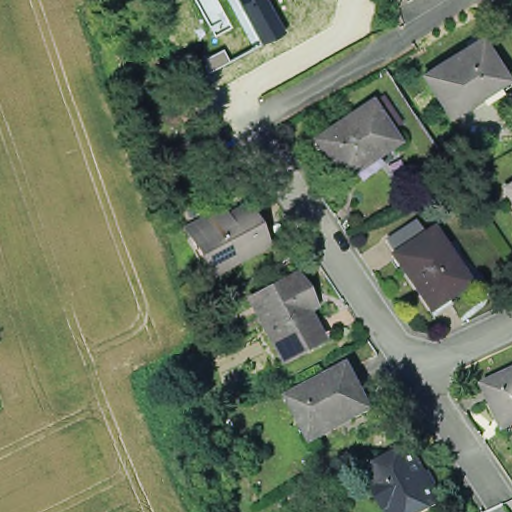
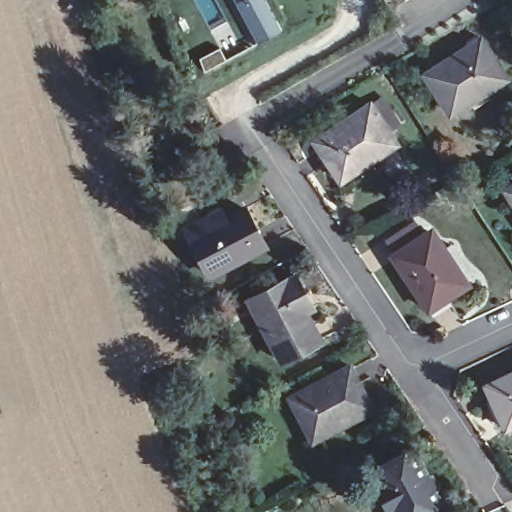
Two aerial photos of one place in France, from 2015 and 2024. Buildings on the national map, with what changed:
unchanged [(280,30),(257,42),(235,0),(265,0),(280,30)]
unchanged [(476,102),(475,99),(455,112),(430,75),(487,38),(512,77),(512,78),(476,102)]
unchanged [(204,69),(199,57),(220,47),(225,59),(204,69)]
unchanged [(380,150),(382,152),(346,176),(320,136),(376,99),(400,135),(380,150)]
unchanged [(182,169),(175,150),(193,142),(200,161),(182,169)]
unchanged [(211,270),(191,232),(245,203),(265,241),(211,270)]
unchanged [(447,255),(450,254),(475,290),(435,316),(397,260),(400,258),(391,245),(420,226),(428,240),(435,235),(447,255)]
unchanged [(287,367),(264,323),(270,320),(260,301),(301,280),(318,312),(310,316),(327,346),(287,367)]
unchanged [(342,435),(340,430),(320,441),(300,402),(360,370),(383,414),(342,435)]
unchanged [(496,386),(512,378),(512,420),(496,386)]
unchanged [(399,512),(379,475),(418,454),(447,508),(440,512),(399,512)]

